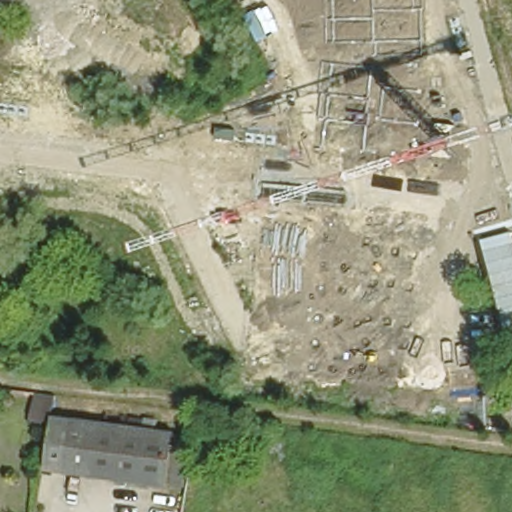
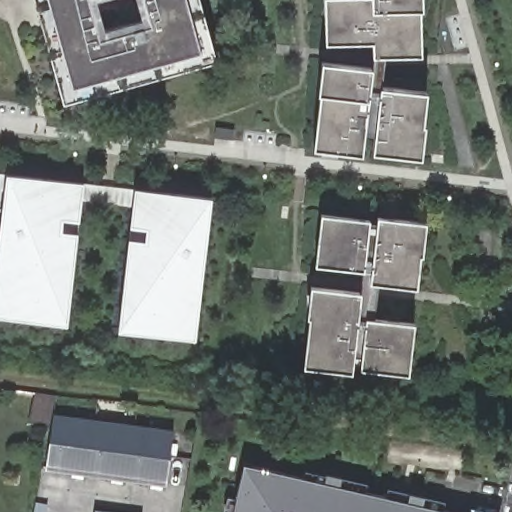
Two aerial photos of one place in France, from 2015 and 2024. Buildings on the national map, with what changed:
new [(63,104),(35,0),(200,0),(217,61),(63,104)]
new [(326,0),(420,0),(420,9),(422,55),(373,56),(372,42),(326,43),(326,0)]
demolished [(305,23),(324,14),(333,33),(314,41),(305,23)]
new [(312,148),(318,93),(322,60),(372,66),(368,99),(361,154),(312,148)]
new [(421,158),(371,153),(379,86),(429,91),(421,158)]
new [(0,317),(0,227),(6,173),(83,183),(67,325),(0,317)]
new [(118,330),(134,188),(212,197),(196,339),(118,330)]
new [(369,219),(363,271),(314,265),(320,213),(369,219)]
new [(417,289),(369,283),(375,217),(426,223),(417,289)]
new [(302,367),(311,287),(361,292),(352,373),(302,367)]
new [(359,369),(365,318),(414,323),(408,375),(359,369)]
unchanged [(183,470),(168,467),(165,486),(65,471),(41,467),(50,420),(29,416),(32,395),(54,399),(51,413),(72,417),(172,432),(187,435),(183,470)]
demolished [(271,419),(270,423),(264,458),(221,451),(227,417),(227,412),(271,419)]
new [(453,512),(233,512),(244,464),(453,512)]
new [(118,512),(95,512),(95,509),(118,512)]

